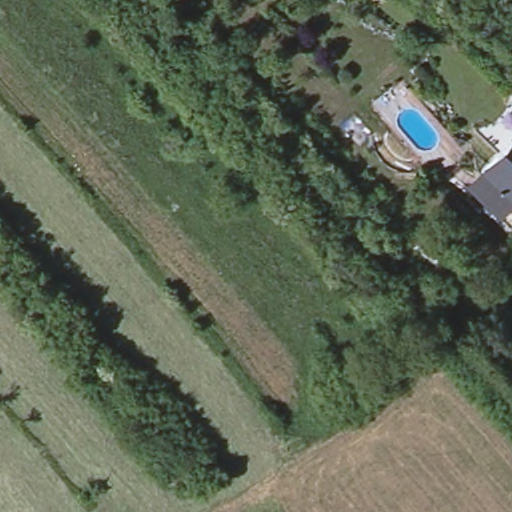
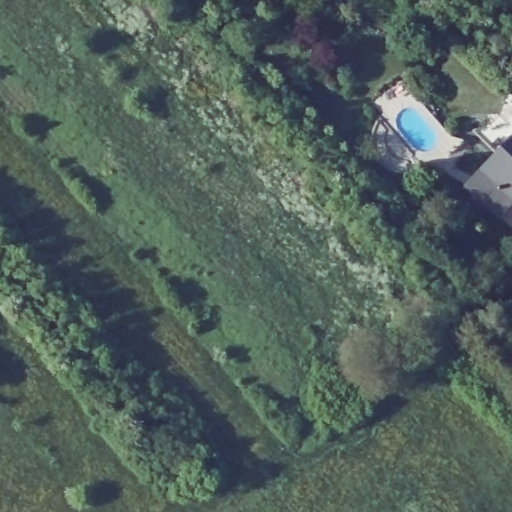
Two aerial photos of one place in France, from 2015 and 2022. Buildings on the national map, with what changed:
unchanged [(488,166),(507,146),(512,141),(512,189),(488,166)]
unchanged [(488,166),(512,189),(512,211),(477,178),(488,166)]

